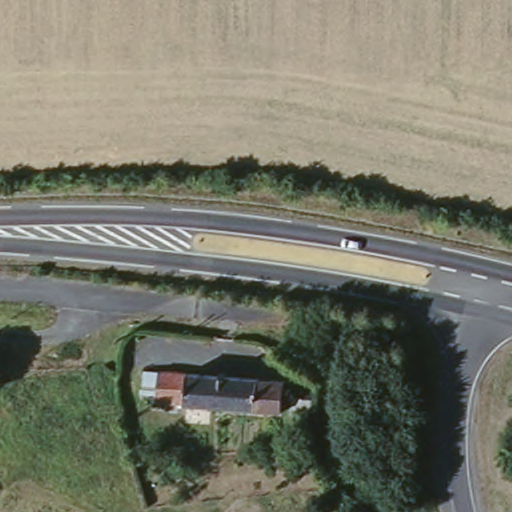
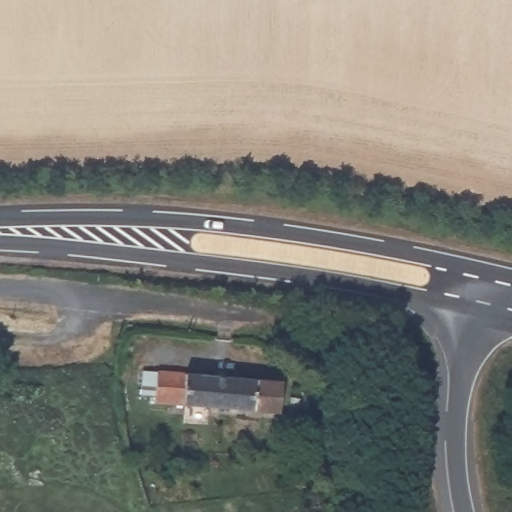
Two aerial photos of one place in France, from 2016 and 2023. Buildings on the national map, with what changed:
unchanged [(153,367),(279,380),(277,408),(151,398),(153,367)]

